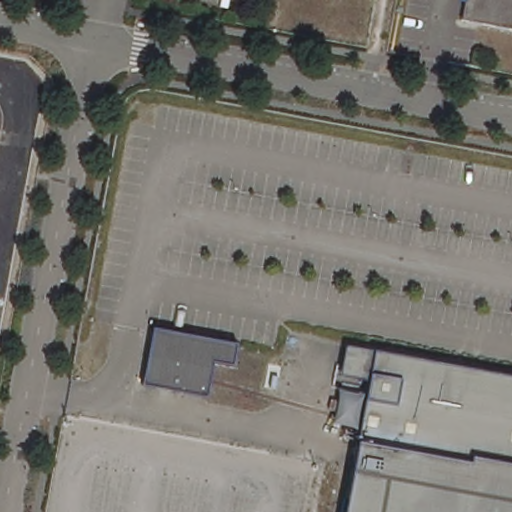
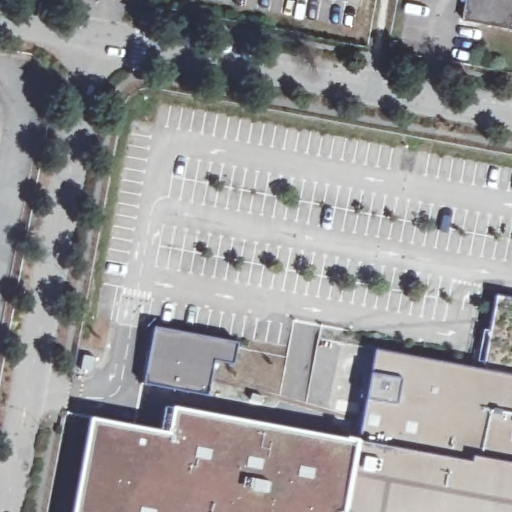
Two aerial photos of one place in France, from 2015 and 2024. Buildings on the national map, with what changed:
unchanged [(459,19),(462,0),(512,0),(512,29),(459,19)]
unchanged [(214,340),(234,343),(230,365),(210,361),(204,395),(140,383),(150,327),(214,340)]
unchanged [(512,376),(512,512),(340,512),(365,380),(337,375),(342,346),(370,351),(370,350),(512,376)]
new [(167,433),(172,408),(353,441),(340,512),(74,512),(92,420),(167,433)]

